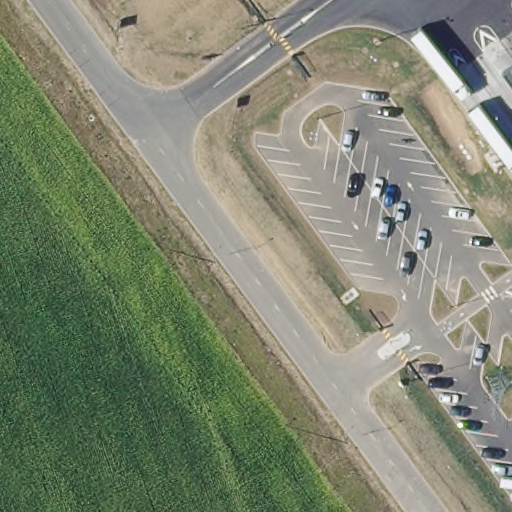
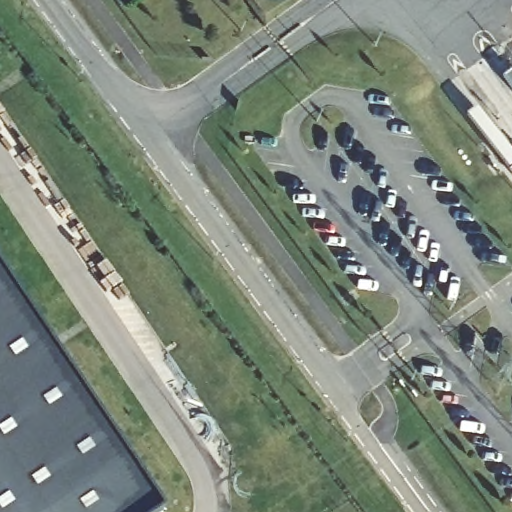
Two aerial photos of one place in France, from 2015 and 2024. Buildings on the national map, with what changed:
new [(152,512),(0,512),(0,275),(159,507),(152,512)]

